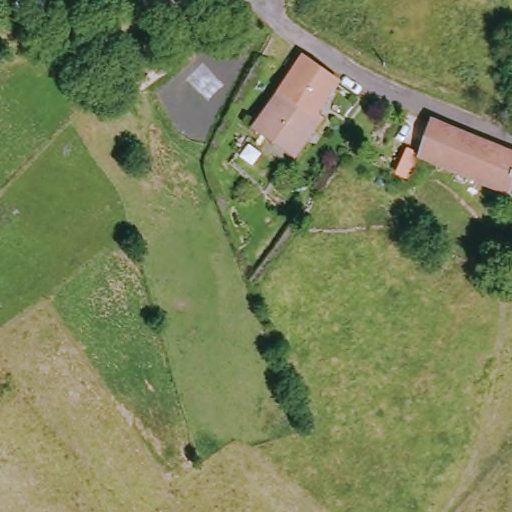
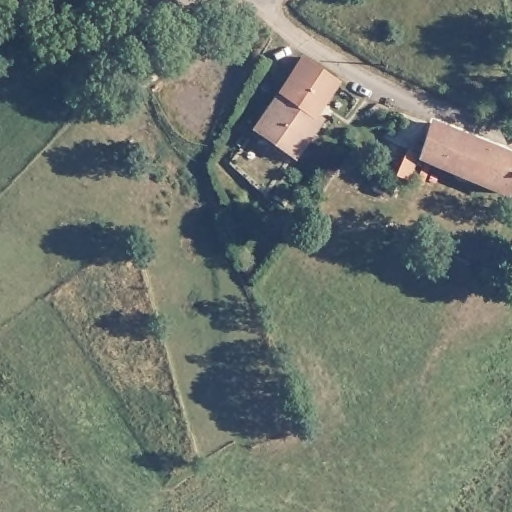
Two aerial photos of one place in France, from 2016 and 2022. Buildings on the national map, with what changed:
unchanged [(131,50),(161,32),(173,53),(141,71),(131,50)]
unchanged [(338,77),(316,111),(321,115),(293,154),(253,125),(305,54),(338,77)]
unchanged [(508,194),(418,156),(430,122),(512,154),(512,182),(508,194)]

